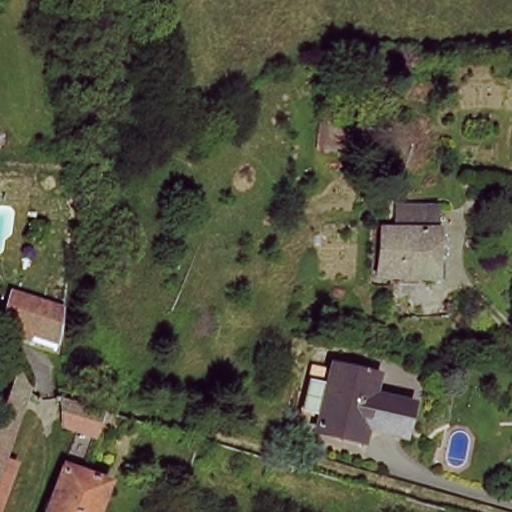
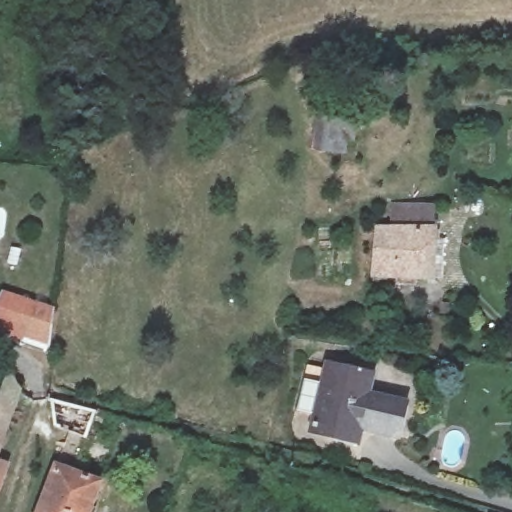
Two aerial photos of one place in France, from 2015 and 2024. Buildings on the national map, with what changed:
unchanged [(435,280),(378,278),(380,234),(395,234),(395,209),(437,210),(435,280)]
unchanged [(0,326),(0,297),(4,287),(55,303),(50,348),(17,336),(0,326)]
unchanged [(358,428),(341,422),(336,437),(308,428),(327,367),(373,381),(358,428)]
unchanged [(8,378),(8,391),(16,403),(0,452),(0,372),(8,378)]
unchanged [(82,431),(43,418),(42,400),(89,411),(82,431)]
unchanged [(89,493),(82,512),(30,512),(45,475),(89,493)]

